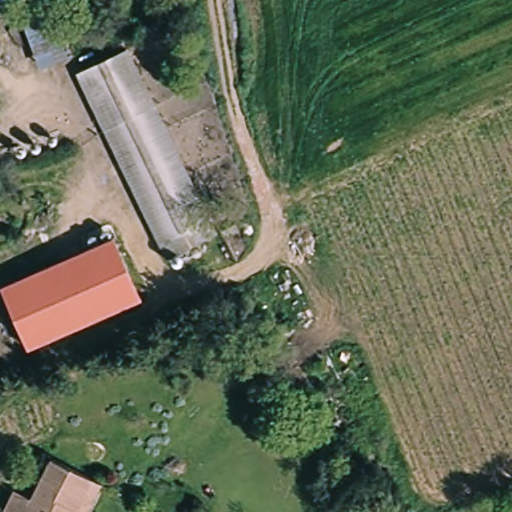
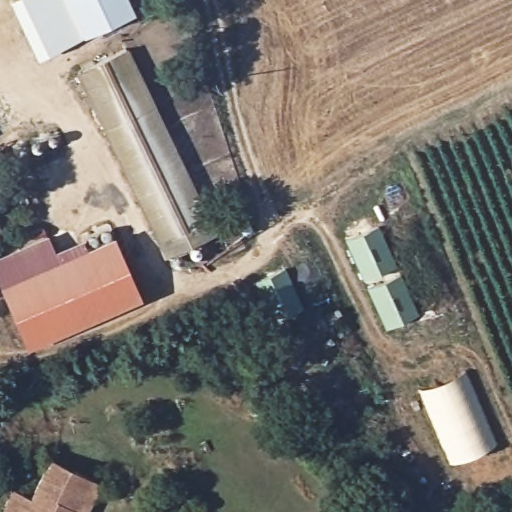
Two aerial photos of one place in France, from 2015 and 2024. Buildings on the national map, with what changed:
new [(12,0),(67,0),(85,38),(38,59),(9,1),(12,0)]
demolished [(34,69),(10,13),(40,0),(66,54),(34,69)]
new [(85,38),(67,0),(129,0),(134,13),(85,38)]
unchanged [(169,258),(69,82),(118,56),(213,229),(214,232),(169,258)]
new [(364,280),(347,241),(379,228),(396,265),(364,280)]
new [(0,269),(0,259),(48,237),(60,264),(8,288),(0,269)]
unchanged [(118,239),(144,299),(35,348),(8,288),(118,239)]
new [(286,268),(304,310),(272,324),(253,284),(286,268)]
new [(384,330),(368,290),(401,275),(418,315),(384,330)]
new [(464,372),(495,445),(451,465),(419,391),(464,372)]
unchanged [(0,511),(10,492),(25,499),(48,460),(87,479),(69,512),(0,512),(0,511)]

